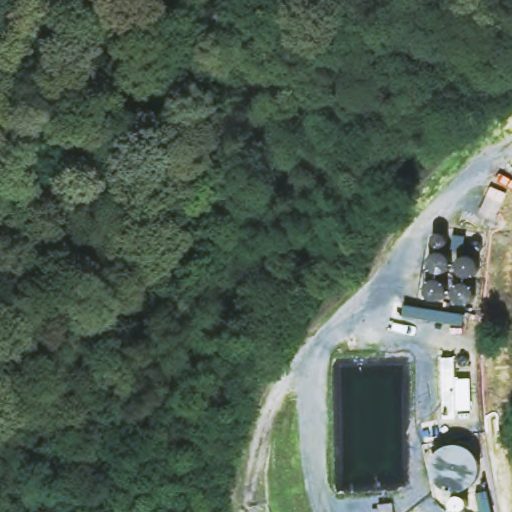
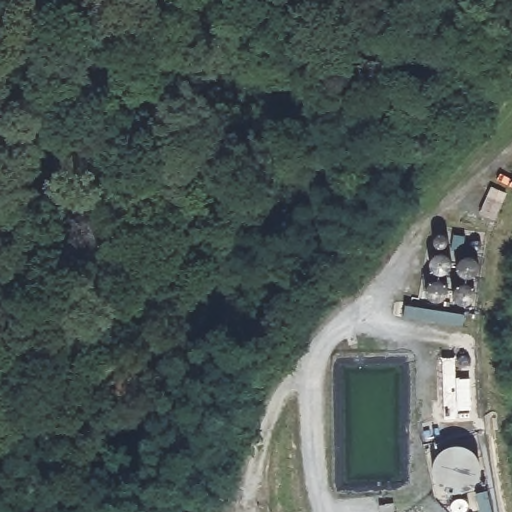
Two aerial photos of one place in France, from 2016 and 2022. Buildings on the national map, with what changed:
unchanged [(396,500),(396,512),(379,512),(378,503),(396,500)]

